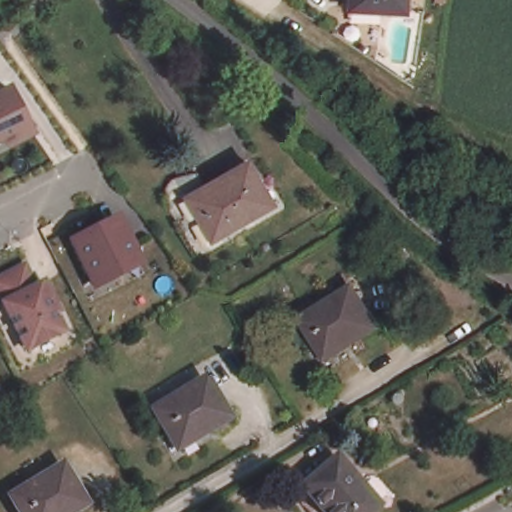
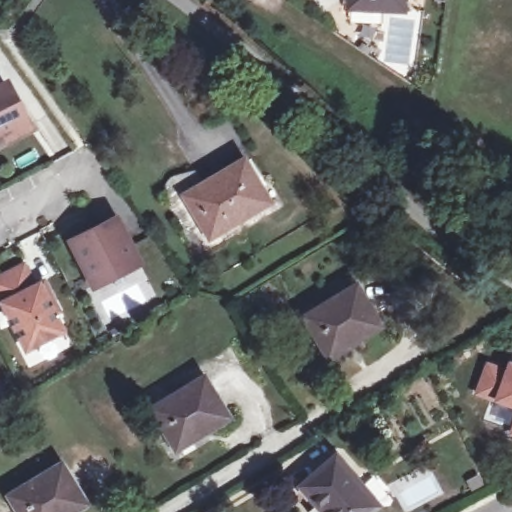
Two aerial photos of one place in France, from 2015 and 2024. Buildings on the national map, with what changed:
unchanged [(355,6),(355,0),(408,0),(407,9),(355,6)]
unchanged [(28,124),(0,138),(0,79),(2,78),(28,124)]
unchanged [(274,209),(215,244),(189,202),(177,183),(200,176),(209,190),(249,165),(274,209)]
unchanged [(125,271),(95,287),(89,275),(72,241),(102,225),(105,231),(120,224),(136,256),(140,264),(125,271)]
unchanged [(0,296),(0,278),(24,266),(35,287),(44,283),(54,302),(58,311),(54,313),(62,331),(27,349),(0,296)]
unchanged [(361,287),(385,326),(334,357),(310,318),(361,287)]
new [(120,326),(125,336),(116,340),(110,331),(120,326)]
new [(485,360),(504,366),(506,359),(512,361),(512,408),(474,395),(485,360)]
unchanged [(214,379),(237,418),(186,449),(162,409),(214,379)]
new [(507,436),(512,419),(512,438),(507,436)]
unchanged [(387,506),(379,512),(322,512),(328,507),(312,488),(345,459),(387,506)]
unchanged [(72,470),(95,510),(91,512),(27,512),(20,501),(72,470)]

